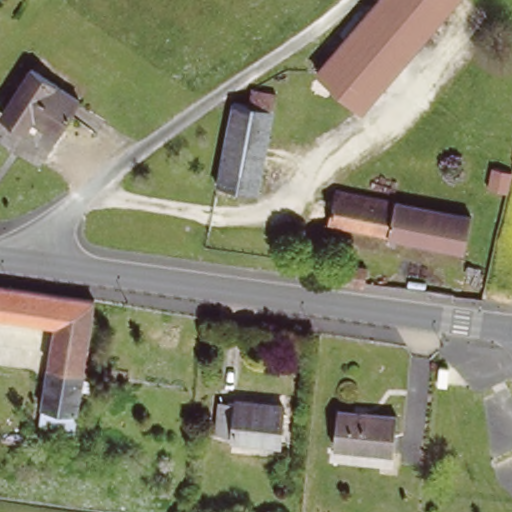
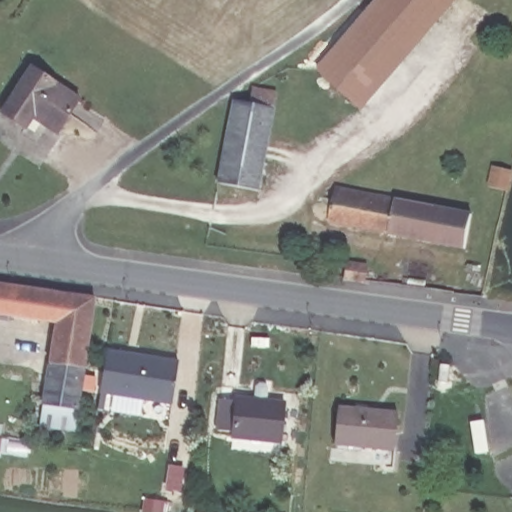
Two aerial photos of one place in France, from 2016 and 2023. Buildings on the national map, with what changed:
unchanged [(375,0),(438,0),(354,102),(317,68),(375,0)]
unchanged [(52,134),(29,119),(22,128),(0,112),(0,110),(29,67),(76,99),(52,134)]
unchanged [(227,133),(233,103),(247,106),(251,90),(275,95),(265,141),(227,133)]
unchanged [(265,141),(254,191),(215,183),(227,133),(265,141)]
unchanged [(352,179),(350,194),(470,214),(465,246),(325,224),(325,221),(315,219),(317,205),(328,207),(333,176),(352,179)]
unchanged [(342,285),(343,266),(369,268),(367,288),(342,285)]
unchanged [(82,383),(74,424),(40,420),(57,320),(0,312),(0,283),(97,296),(86,357),(93,358),(90,371),(96,372),(94,384),(82,383)]
new [(105,413),(97,411),(107,350),(179,362),(172,407),(105,395),(105,413)]
unchanged [(449,366),(447,385),(437,384),(440,365),(449,366)]
unchanged [(288,394),(282,448),(229,443),(232,424),(221,423),(225,391),(239,393),(240,389),(288,394)]
unchanged [(397,412),(393,449),(330,442),(335,405),(397,412)]

